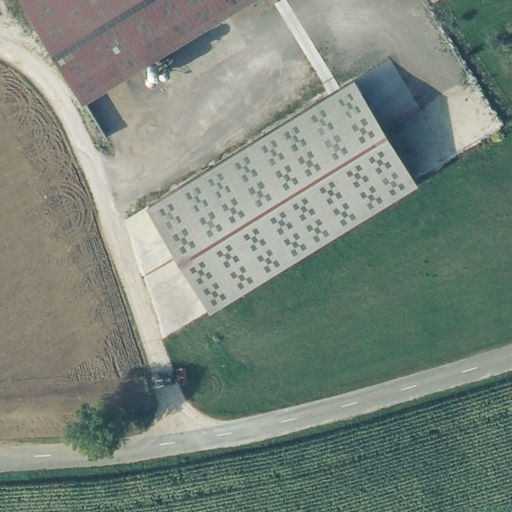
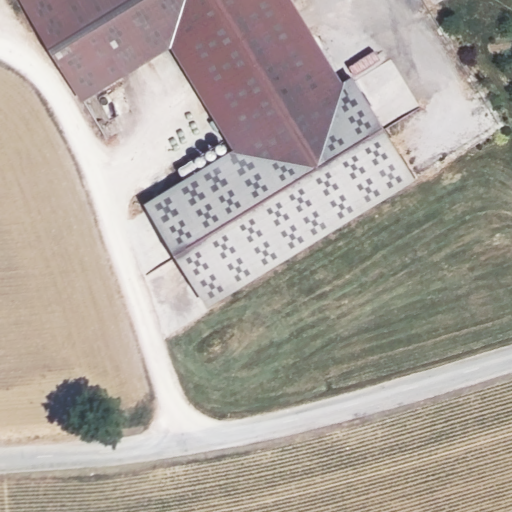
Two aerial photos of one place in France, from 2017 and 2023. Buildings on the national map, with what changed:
unchanged [(21,0),(246,0),(82,100),(21,0)]
new [(247,0),(293,0),(343,82),(235,150),(170,46),(247,0)]
unchanged [(353,76),(418,185),(210,309),(147,205),(353,76)]

